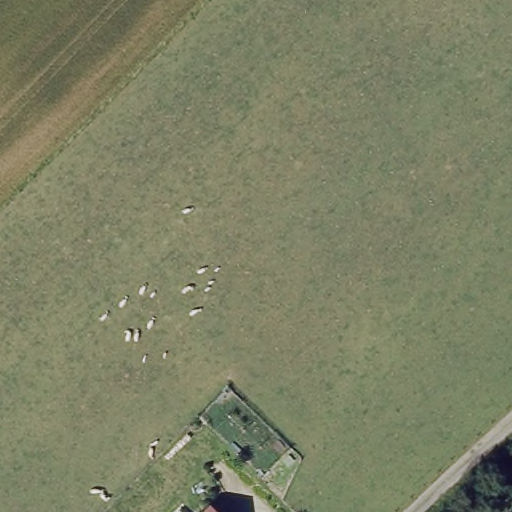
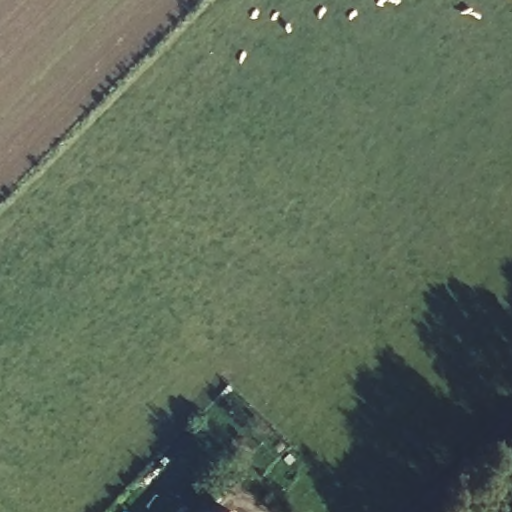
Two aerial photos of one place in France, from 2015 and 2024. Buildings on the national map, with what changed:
unchanged [(215,503),(224,512),(205,512),(215,503)]

